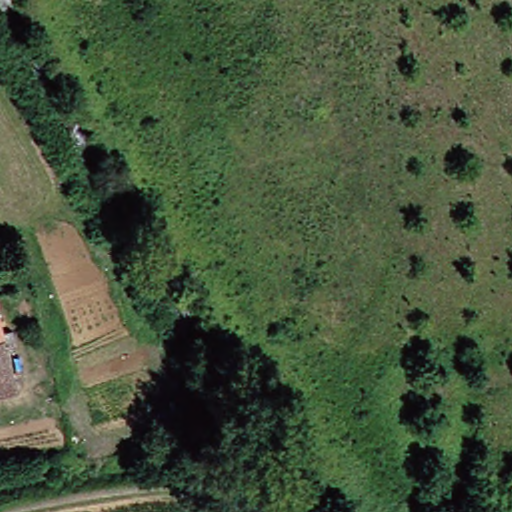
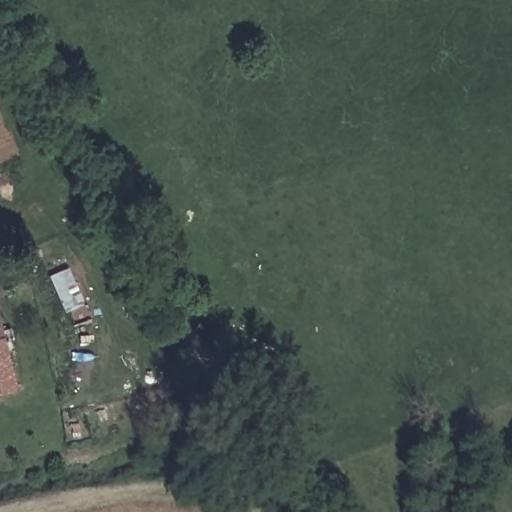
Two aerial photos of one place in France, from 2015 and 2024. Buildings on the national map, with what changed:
unchanged [(0,337),(12,397),(0,399),(0,337)]

